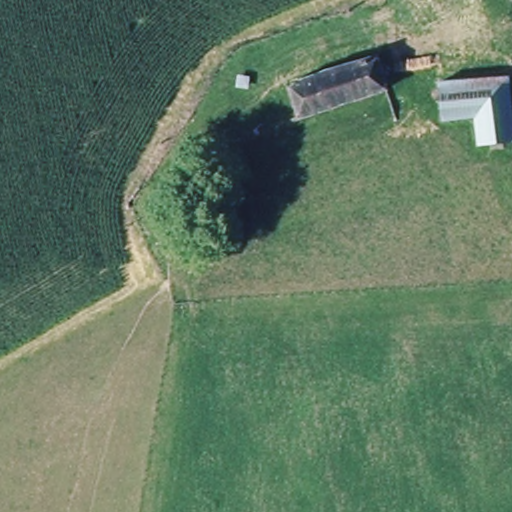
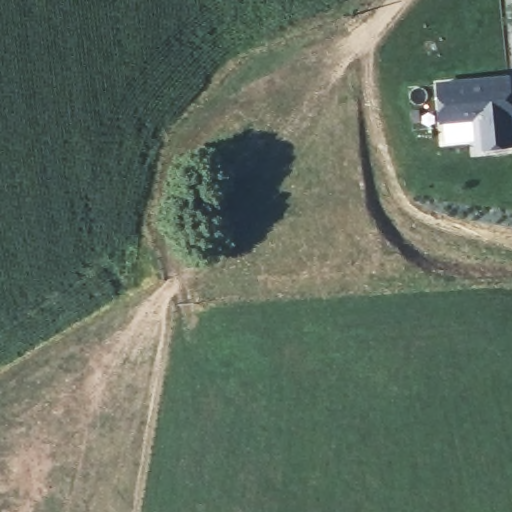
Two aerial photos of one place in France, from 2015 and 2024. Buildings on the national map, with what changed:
demolished [(289,89),(377,61),(386,92),(297,119),(289,89)]
unchanged [(480,149),(480,121),(441,119),(440,82),(512,82),(512,147),(480,149)]

